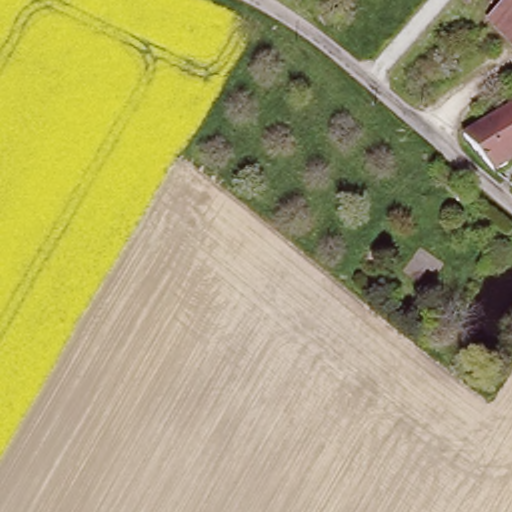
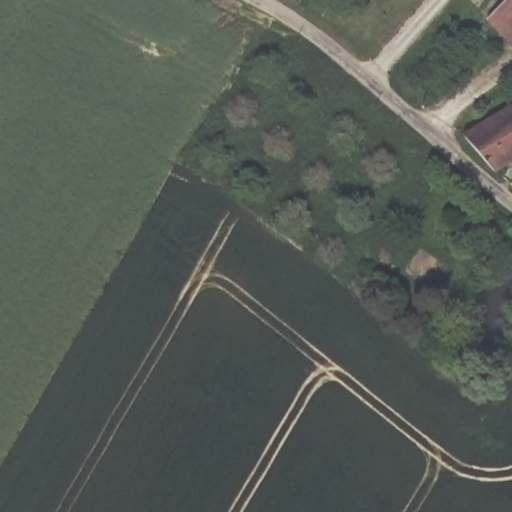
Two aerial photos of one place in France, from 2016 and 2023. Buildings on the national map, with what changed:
unchanged [(506,36),(486,17),(494,5),(499,0),(512,0),(512,41),(506,36)]
unchanged [(512,102),(512,159),(500,166),(465,128),(512,102)]

